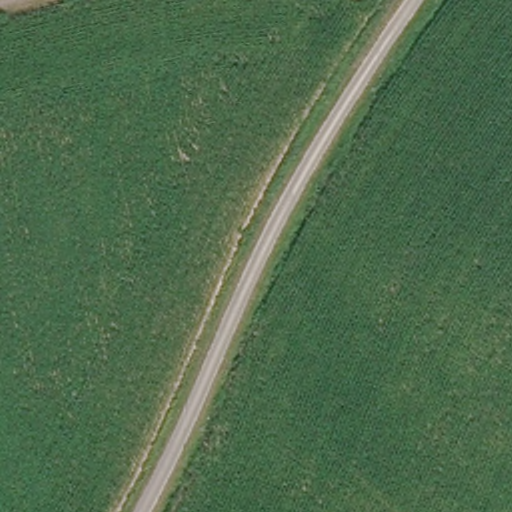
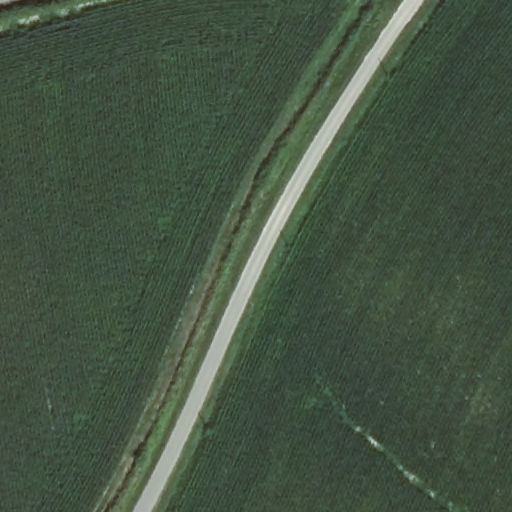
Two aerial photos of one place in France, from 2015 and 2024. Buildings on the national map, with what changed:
[]

